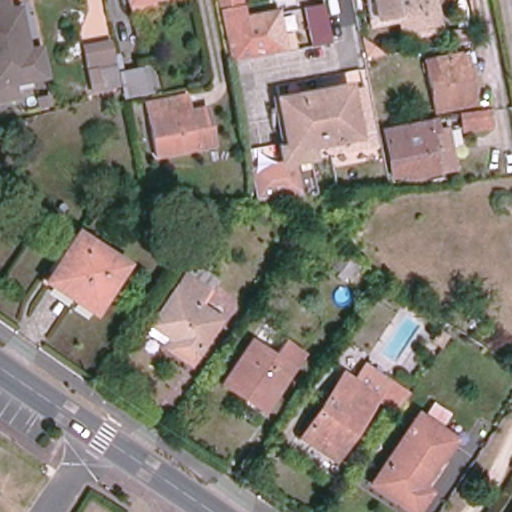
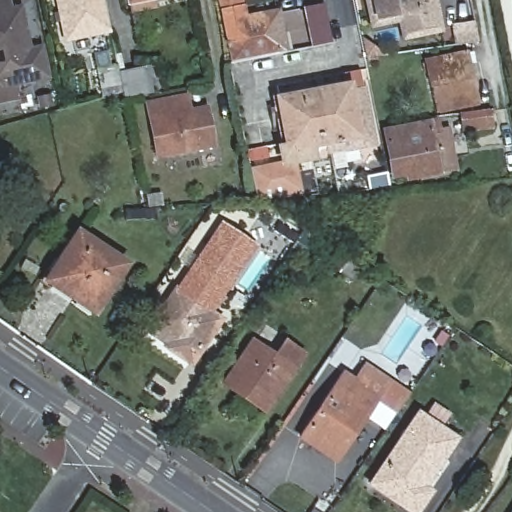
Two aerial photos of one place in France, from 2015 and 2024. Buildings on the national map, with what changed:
unchanged [(39,50),(44,75),(0,84),(0,0),(5,0),(7,12),(18,9),(27,52),(39,50)]
new [(54,0),(104,0),(111,32),(63,42),(54,0)]
unchanged [(127,0),(142,0),(128,3),(127,0)]
unchanged [(242,5),(244,19),(277,13),(284,52),(279,53),(250,59),(230,63),(220,9),(222,9),(222,6),(220,0),(235,0),(236,4),(237,6),(242,5)]
unchanged [(434,26),(415,30),(411,11),(376,18),(372,0),(429,0),(429,1),(434,26)]
new [(475,21),(478,42),(454,45),(451,24),(475,21)]
unchanged [(364,59),(361,40),(381,56),(364,59)]
unchanged [(477,105),(436,113),(425,61),(466,52),(477,105)]
unchanged [(123,68),(118,69),(114,54),(119,53),(123,68)]
unchanged [(119,85),(104,89),(99,69),(114,66),(119,85)]
unchanged [(147,92),(128,97),(122,72),(141,67),(147,92)]
unchanged [(282,147),(287,147),(278,100),(347,87),(348,92),(364,89),(374,144),(344,149),(344,147),(329,150),(328,141),(308,145),(310,159),(293,162),(284,164),(282,147)]
unchanged [(212,146),(156,157),(145,102),(185,94),(189,111),(204,107),(212,146)]
unchanged [(490,125),(462,127),(461,114),(489,110),(490,125)]
unchanged [(454,167),(438,171),(439,172),(407,179),(406,174),(392,177),(383,131),(437,121),(439,132),(446,131),(454,167)]
unchanged [(294,196),(264,199),(256,200),(250,170),(284,164),(293,162),(300,196),(294,196)]
unchanged [(161,204),(147,205),(146,195),(160,194),(161,204)]
new [(203,307),(220,279),(198,265),(181,290),(176,287),(220,221),(258,247),(213,312),(203,307)]
unchanged [(304,262),(288,252),(305,226),(320,237),(304,262)]
unchanged [(93,311),(48,281),(78,235),(124,265),(93,311)]
unchanged [(196,362),(153,333),(198,265),(220,279),(203,307),(223,320),(196,362)]
unchanged [(268,406),(244,390),(240,395),(224,384),(252,341),(275,357),(284,342),(302,353),(268,406)]
unchanged [(349,443),(334,467),(298,442),(344,372),(356,380),(366,365),(389,378),(349,443)]
unchanged [(412,393),(394,417),(379,408),(354,447),(349,443),(389,378),(412,393)]
unchanged [(421,487),(428,492),(418,507),(408,500),(404,506),(372,485),(418,416),(424,419),(433,406),(448,416),(439,429),(453,439),(421,487)]

